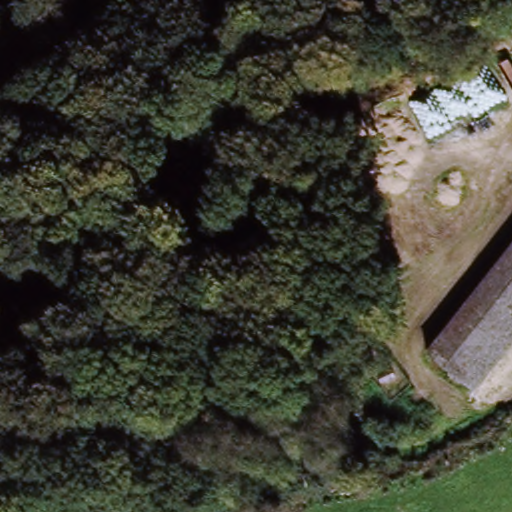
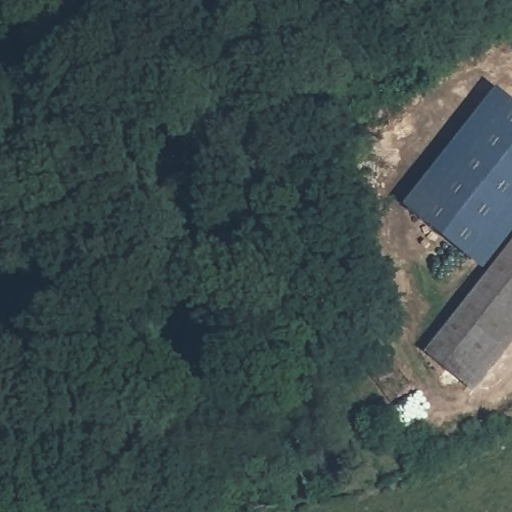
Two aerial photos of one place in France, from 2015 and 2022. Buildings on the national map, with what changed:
new [(512,249),(490,277),(405,209),(497,92),(512,103),(512,249)]
unchanged [(427,358),(512,249),(512,348),(476,394),(427,358)]

